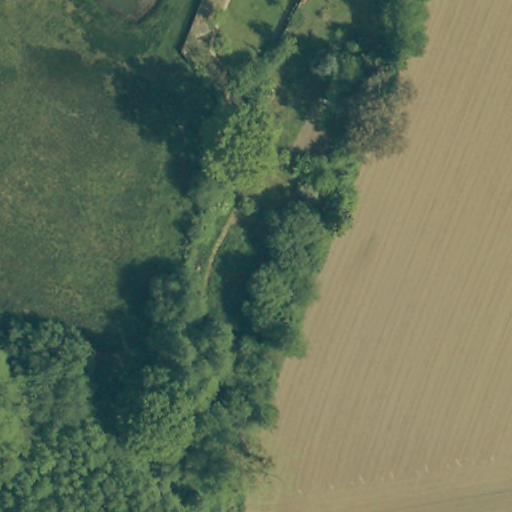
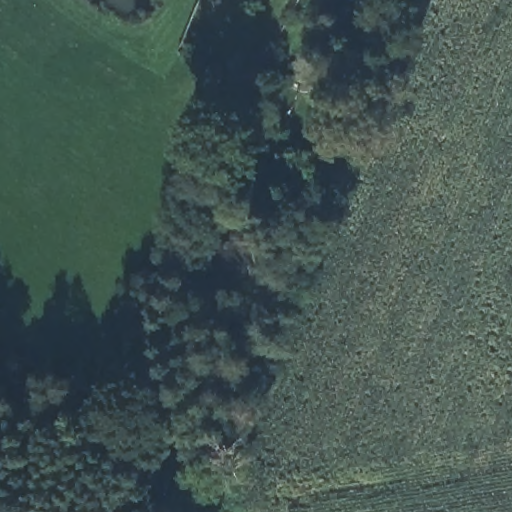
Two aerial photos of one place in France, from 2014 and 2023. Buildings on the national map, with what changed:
unchanged [(261,107),(251,132),(267,139),(254,174),(231,164),(246,131),(237,125),(240,118),(248,117),(255,103),(261,107)]

